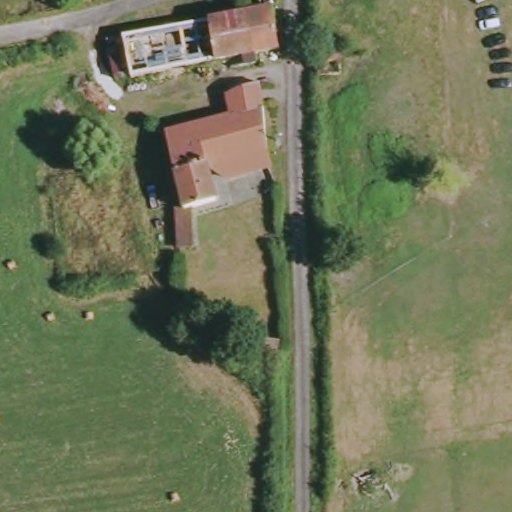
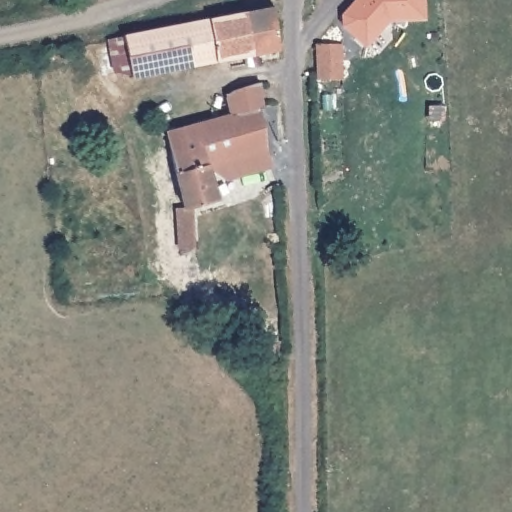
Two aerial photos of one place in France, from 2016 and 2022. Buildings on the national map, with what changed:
new [(342,14),(354,0),(425,0),(425,19),(389,21),(366,47),(343,27),(342,14)]
unchanged [(254,10),(279,5),(285,46),(263,50),(141,73),(124,75),(114,33),(131,29),(133,33),(254,10)]
unchanged [(342,42),(351,46),(355,55),(344,58),(345,71),(323,74),(319,46),(342,42)]
unchanged [(264,150),(216,163),(203,166),(211,197),(193,203),(188,248),(170,250),(170,211),(184,205),(163,130),(226,113),(224,103),(226,95),(232,89),(259,81),(259,91),(260,99),(260,104),(263,141),(264,150)]
unchanged [(265,172),(221,184),(216,163),(264,150),(265,172)]

